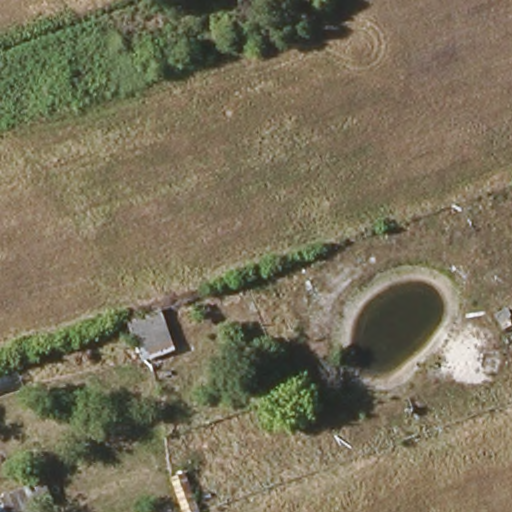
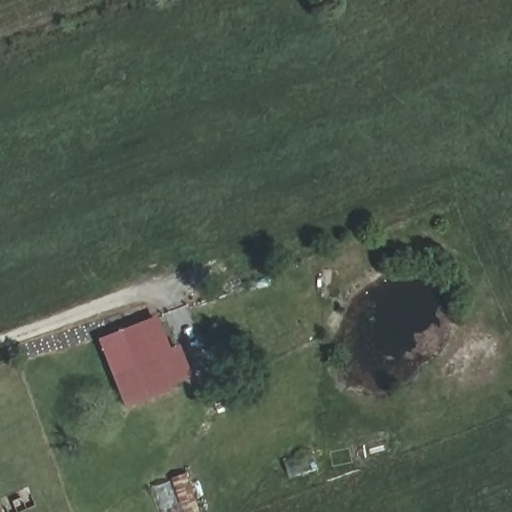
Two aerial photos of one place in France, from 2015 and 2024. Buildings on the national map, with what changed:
demolished [(128,322),(162,312),(175,355),(141,365),(128,322)]
new [(125,407),(98,340),(159,315),(170,348),(179,345),(193,380),(125,407)]
new [(185,473),(201,511),(199,512),(183,512),(171,478),(185,473)]
unchanged [(51,506),(34,512),(4,512),(0,500),(47,480),(51,506)]

